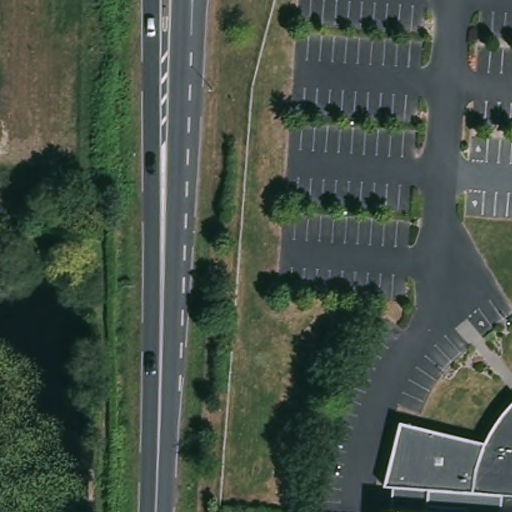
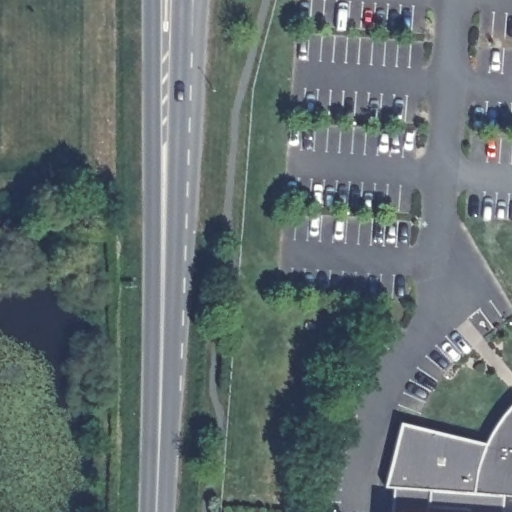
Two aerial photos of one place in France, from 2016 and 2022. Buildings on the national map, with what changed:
unchanged [(425,512),(390,512),(391,490),(382,490),(397,425),(482,446),(503,409),(512,399),(512,499),(426,492),(425,512)]

